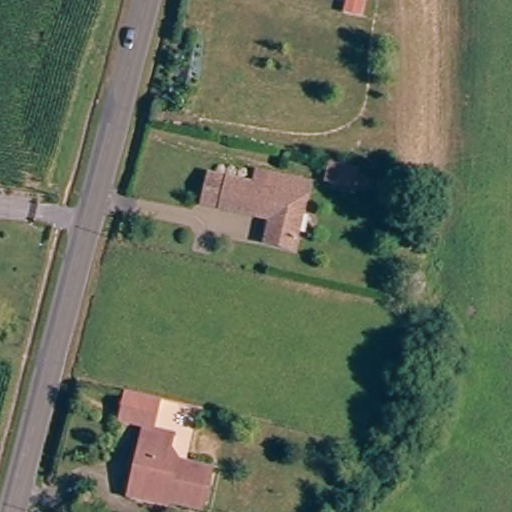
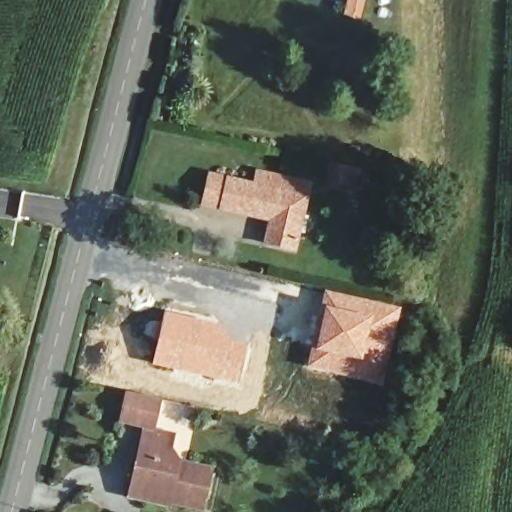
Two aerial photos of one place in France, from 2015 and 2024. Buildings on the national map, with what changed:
unchanged [(335,164),(360,168),(358,184),(331,180),(333,164),(335,164)]
unchanged [(275,213),(209,203),(212,174),(254,180),(255,168),(310,175),(300,242),(272,239),(275,213)]
new [(316,330),(323,289),(400,307),(382,387),(305,369),(316,330)]
new [(164,311),(235,328),(233,337),(249,341),(239,385),(151,365),(164,311)]
unchanged [(132,492),(135,483),(145,425),(120,420),(125,391),(134,392),(159,397),(153,426),(183,432),(180,446),(191,459),(216,464),(209,503),(176,497),(175,501),(132,492)]

